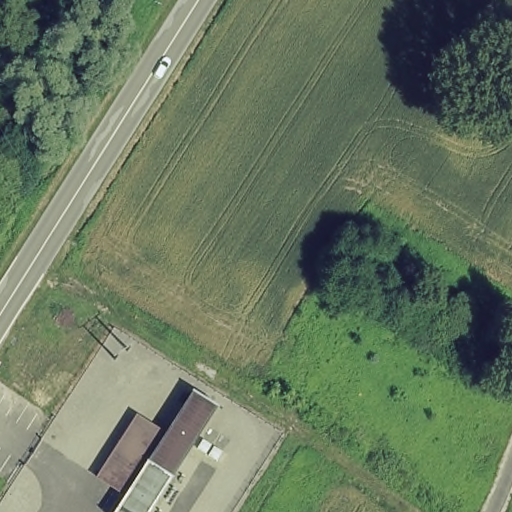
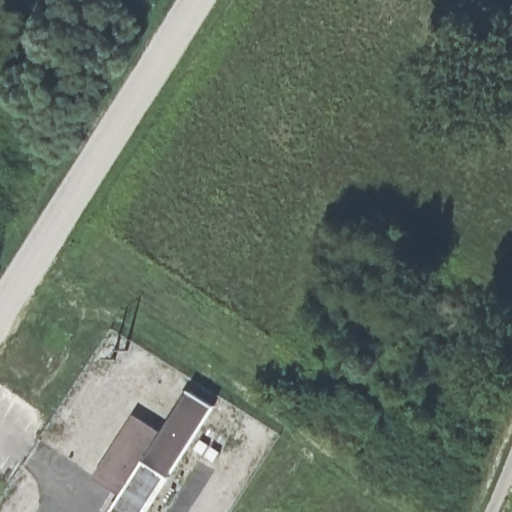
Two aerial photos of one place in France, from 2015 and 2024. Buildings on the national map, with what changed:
unchanged [(168,438),(196,395),(218,408),(155,512),(123,512),(132,498),(103,480),(140,420),(168,438)]

